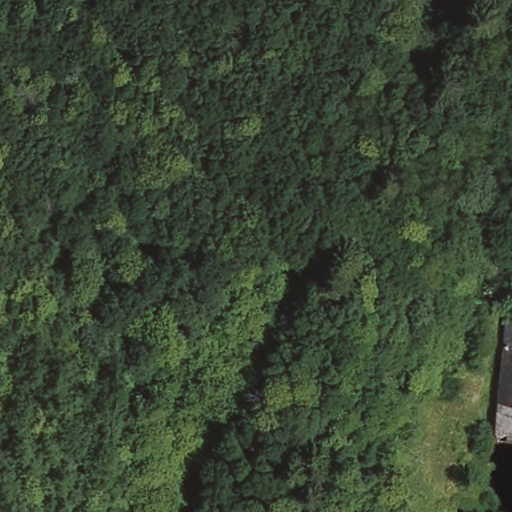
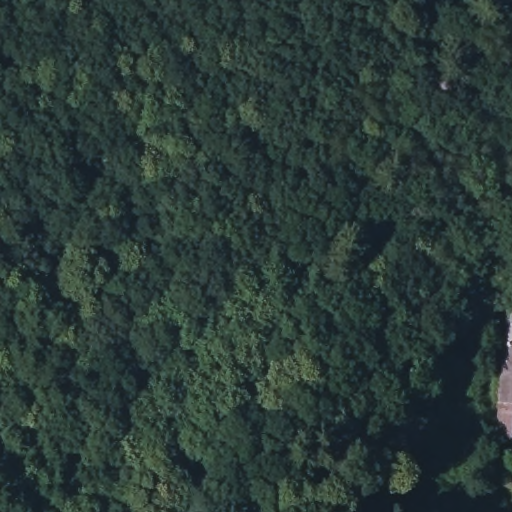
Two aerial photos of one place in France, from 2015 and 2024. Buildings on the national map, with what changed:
unchanged [(494,435),(495,317),(512,316),(512,435),(494,435)]

